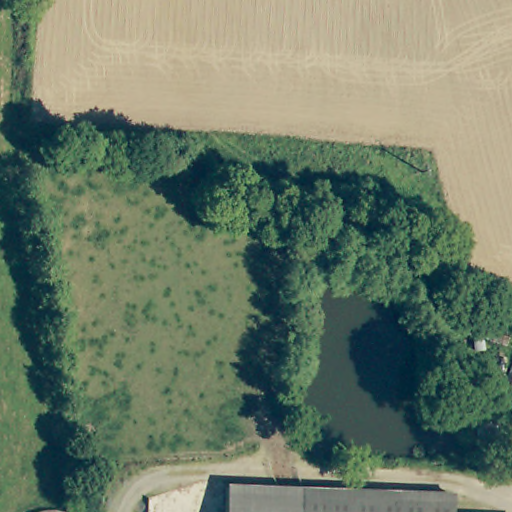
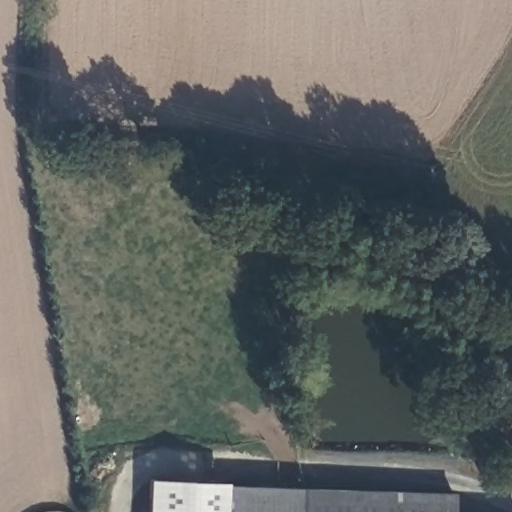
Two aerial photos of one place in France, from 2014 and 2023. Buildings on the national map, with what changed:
unchanged [(478,421),(499,418),(503,468),(483,471),(478,421)]
new [(148,480),(232,484),(231,512),(147,512),(148,480)]
unchanged [(458,492),(457,512),(231,512),(232,484),(458,492)]

